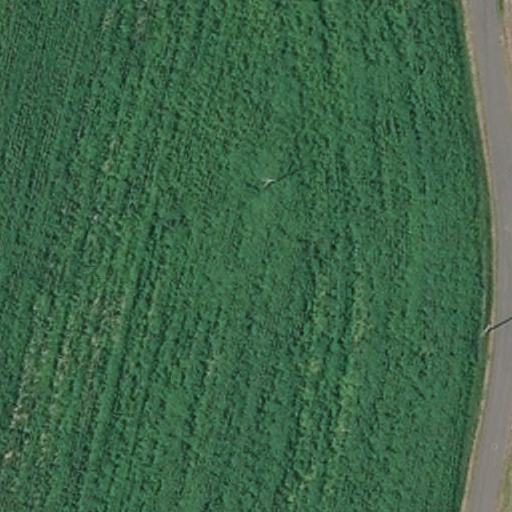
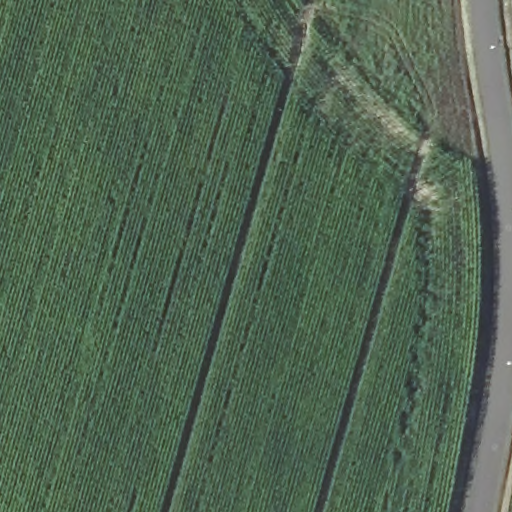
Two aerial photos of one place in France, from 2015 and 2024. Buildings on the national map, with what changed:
[]

